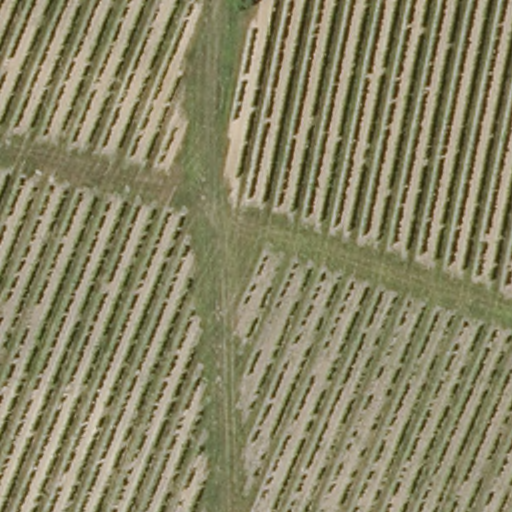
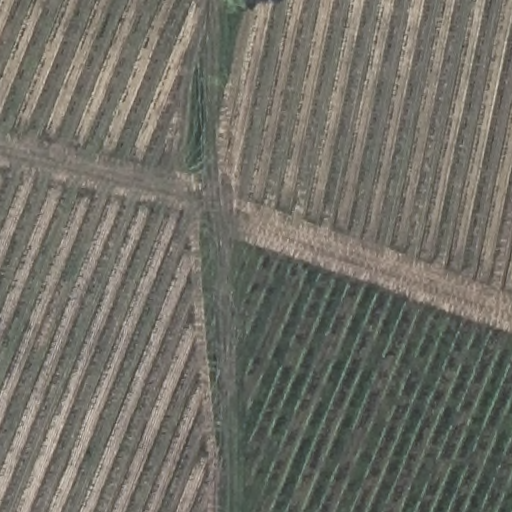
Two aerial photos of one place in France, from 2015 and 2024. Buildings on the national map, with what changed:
[]

